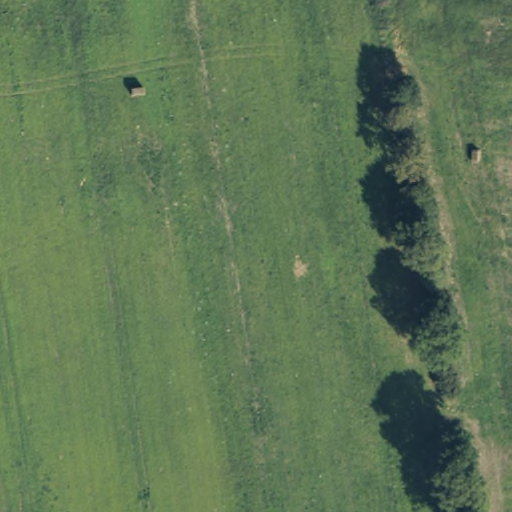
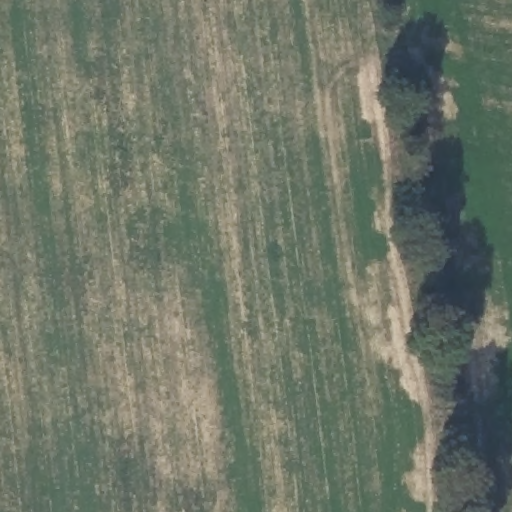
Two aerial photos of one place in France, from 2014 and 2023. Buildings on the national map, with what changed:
[]

